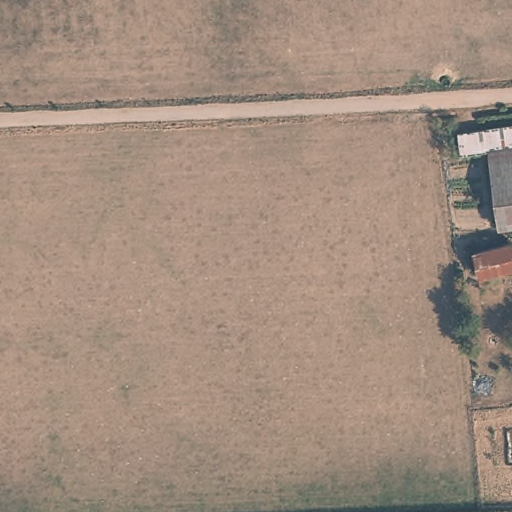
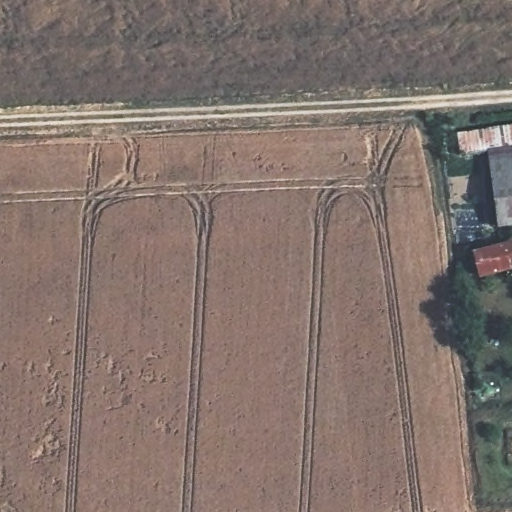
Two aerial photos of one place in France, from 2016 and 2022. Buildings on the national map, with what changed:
unchanged [(488,150),(461,153),(459,132),(512,126),(512,224),(498,226),(488,150)]
unchanged [(512,269),(478,277),(470,252),(510,244),(512,250),(512,269)]

